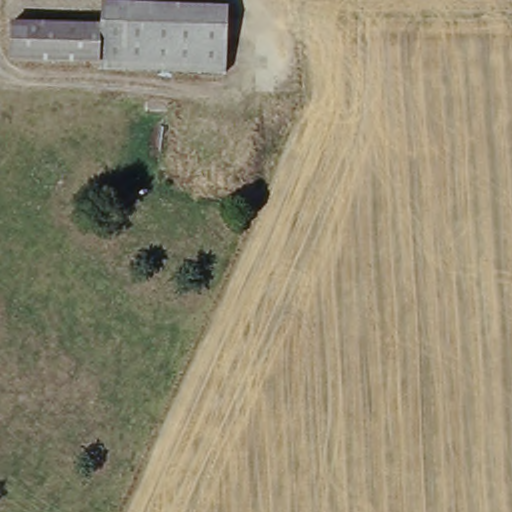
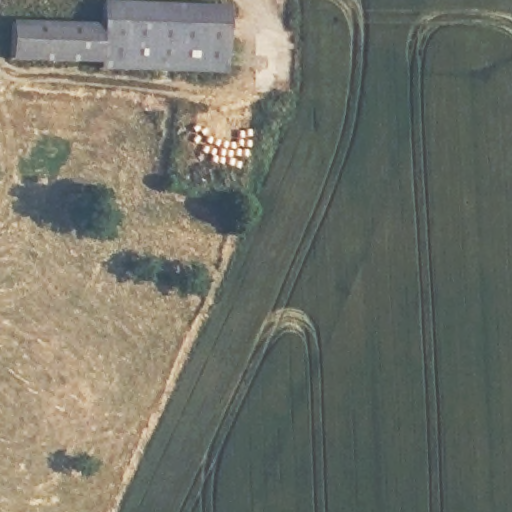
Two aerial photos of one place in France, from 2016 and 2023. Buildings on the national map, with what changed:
unchanged [(101,57),(103,26),(104,0),(226,3),(225,71),(101,68),(101,57)]
unchanged [(101,57),(9,55),(11,23),(103,26),(101,57)]

